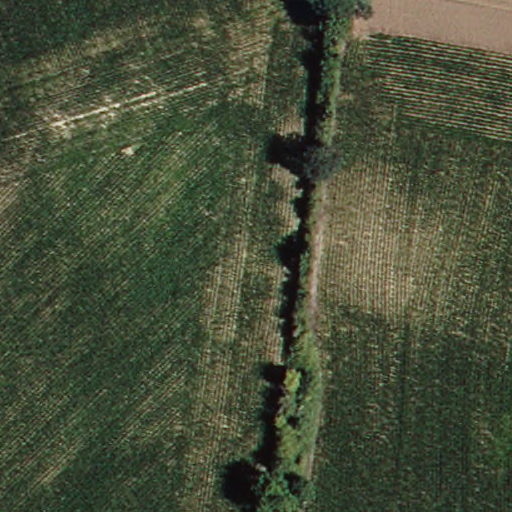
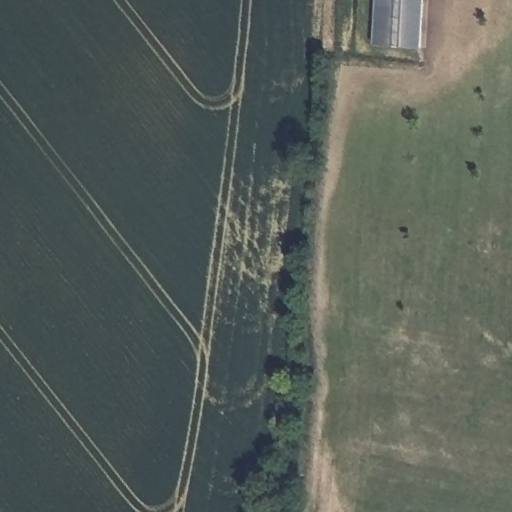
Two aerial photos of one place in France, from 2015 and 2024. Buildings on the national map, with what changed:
new [(375,0),(426,0),(422,49),(372,45),(375,0)]

